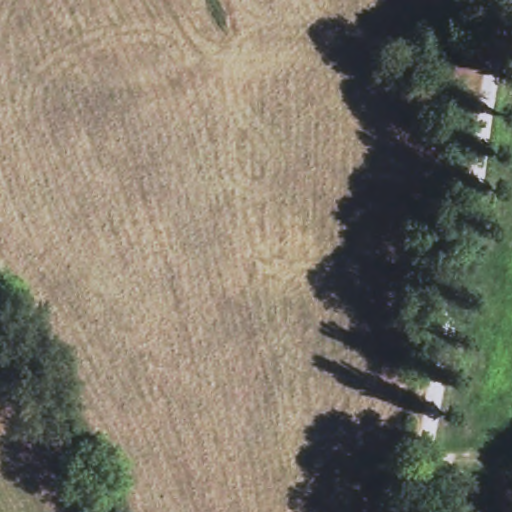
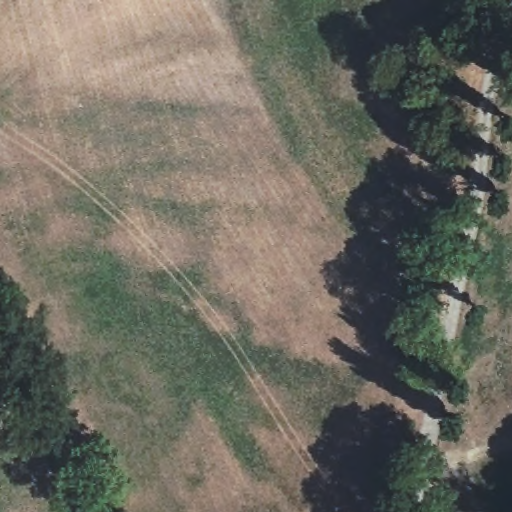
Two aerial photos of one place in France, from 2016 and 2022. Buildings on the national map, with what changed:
[]

